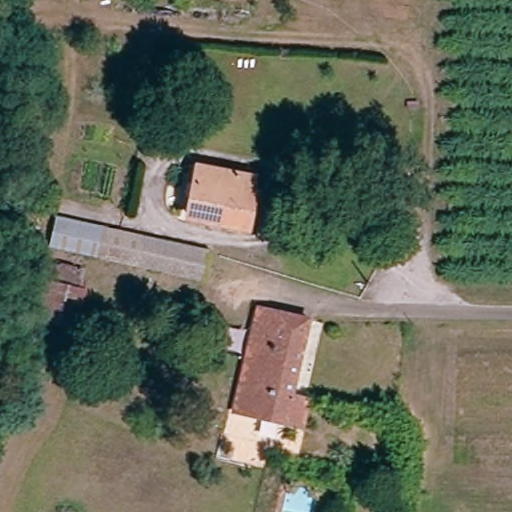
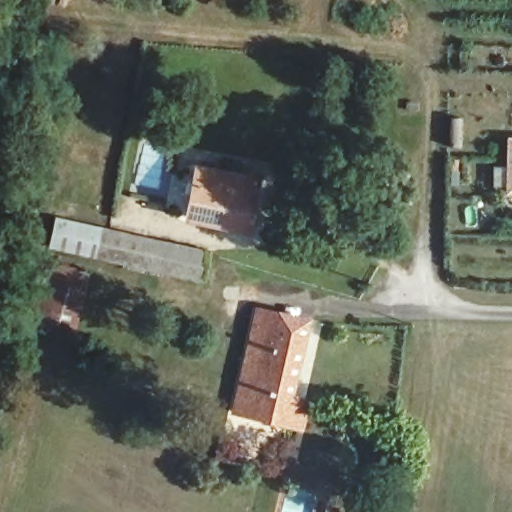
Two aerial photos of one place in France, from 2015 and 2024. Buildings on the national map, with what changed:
new [(506,195),(507,137),(512,138),(512,195),(506,195)]
unchanged [(198,175),(252,185),(243,235),(189,225),(198,175)]
unchanged [(100,235),(204,258),(198,286),(94,263),(100,235)]
unchanged [(79,340),(19,330),(33,267),(90,280),(79,340)]
unchanged [(253,309),(305,321),(300,339),(286,397),(304,401),(298,430),(279,425),(274,448),(223,436),(229,413),(253,309)]

